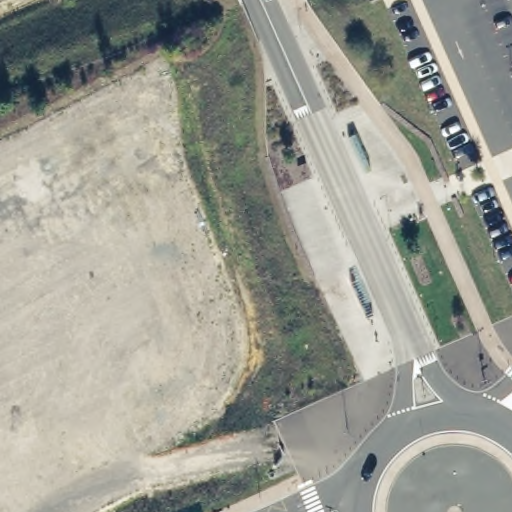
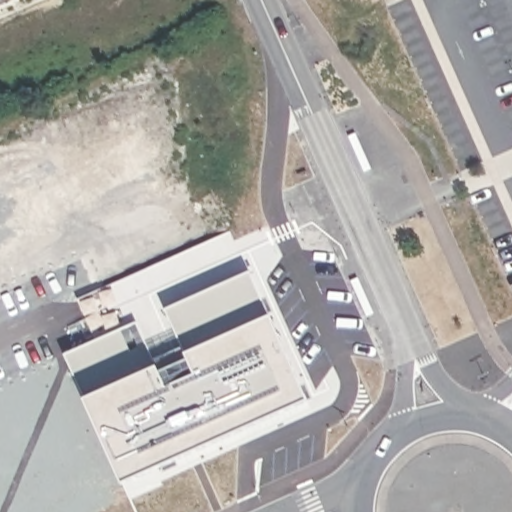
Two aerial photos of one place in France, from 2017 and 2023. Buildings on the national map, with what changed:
new [(307,399),(123,483),(65,356),(97,341),(78,299),(230,230),(307,399)]

